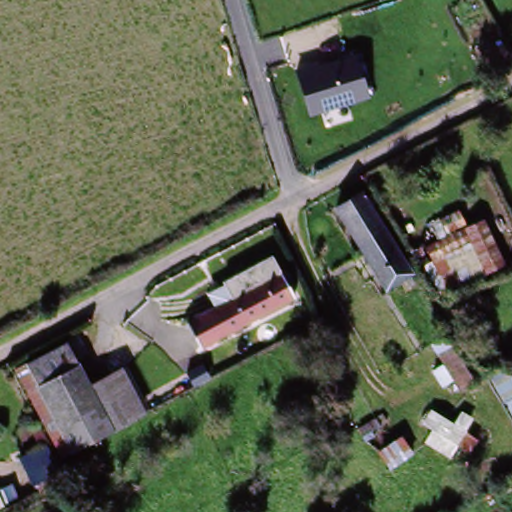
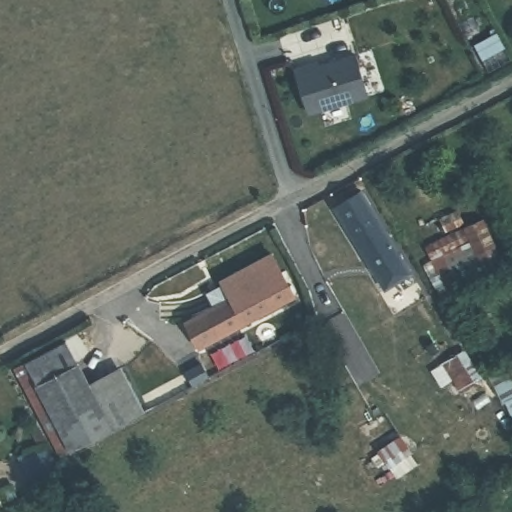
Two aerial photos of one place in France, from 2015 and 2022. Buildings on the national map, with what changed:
unchanged [(294,69),(353,51),(368,96),(310,116),(294,69)]
unchanged [(384,297),(334,209),(363,192),(413,280),(384,297)]
unchanged [(510,265),(447,297),(425,240),(489,216),(510,265)]
unchanged [(225,289),(225,288),(271,259),(295,299),(203,354),(190,330),(215,314),(207,300),(225,289)]
unchanged [(25,367),(75,340),(101,384),(128,369),(152,412),(72,456),(25,367)]
unchanged [(462,409),(438,362),(450,355),(475,403),(462,409)]

